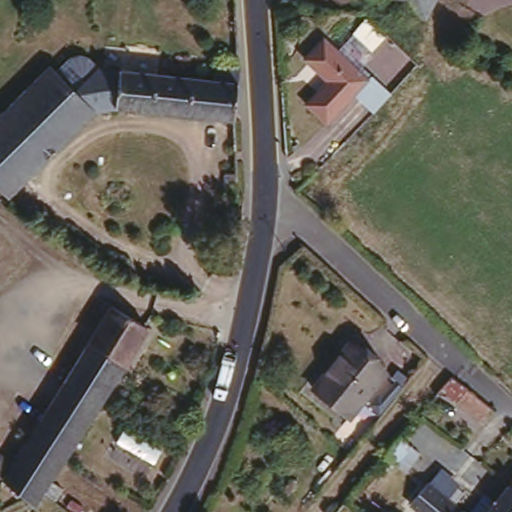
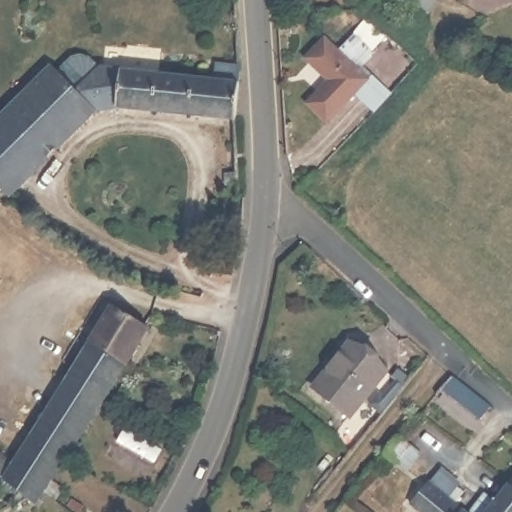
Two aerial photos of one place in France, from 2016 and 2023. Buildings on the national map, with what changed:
unchanged [(426,14),(398,0),(433,0),(426,14)]
unchanged [(386,36),(371,52),(353,34),(367,17),(386,36)]
unchanged [(368,69),(327,113),(306,93),(328,71),(305,48),(324,28),(368,69)]
unchanged [(234,77),(230,114),(111,103),(90,106),(4,191),(0,187),(0,107),(46,61),(57,71),(78,50),(93,64),(115,64),(209,75),(210,58),(235,61),(234,77)]
unchanged [(387,122),(378,114),(399,89),(409,98),(387,122)]
unchanged [(238,172),(239,184),(226,185),(226,173),(238,172)]
unchanged [(19,458),(79,363),(117,300),(154,322),(108,394),(70,454),(50,485),(40,500),(32,493),(8,474),(0,468),(0,443),(19,458)]
unchanged [(319,383),(356,337),(391,365),(354,411),(319,383)]
unchanged [(491,406),(481,419),(441,387),(451,376),(491,406)]
unchanged [(381,459),(385,453),(399,437),(420,453),(406,469),(397,462),(392,468),(381,459)]
unchanged [(512,475),(512,482),(509,479),(512,475)]
unchanged [(428,477),(468,510),(485,488),(495,496),(509,479),(512,482),(512,512),(427,512),(410,498),(428,477)]

